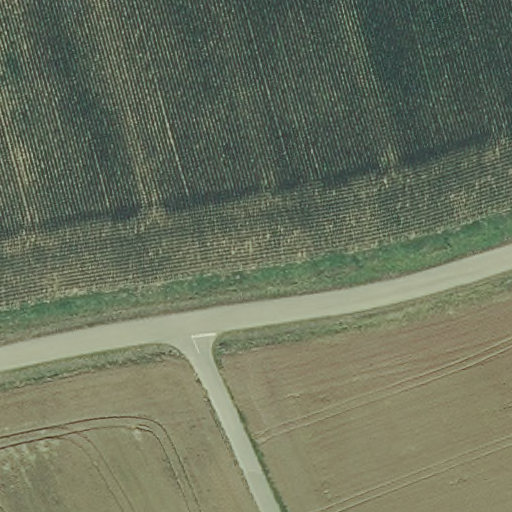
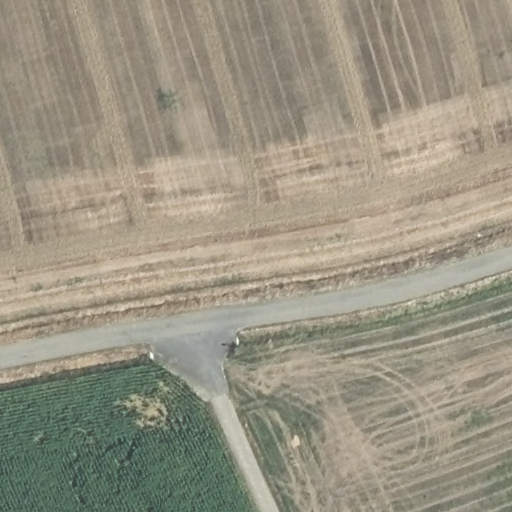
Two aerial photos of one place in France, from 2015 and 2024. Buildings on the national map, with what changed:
[]

